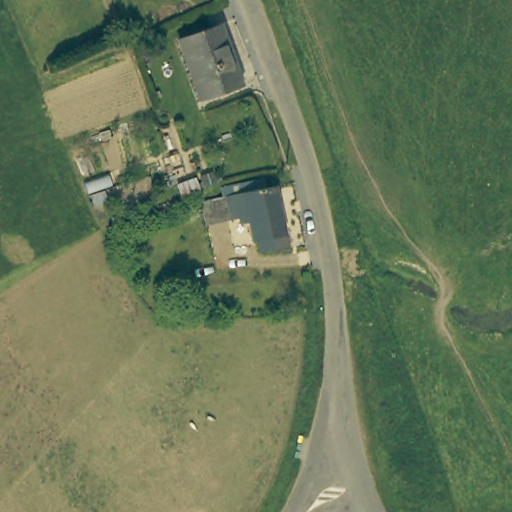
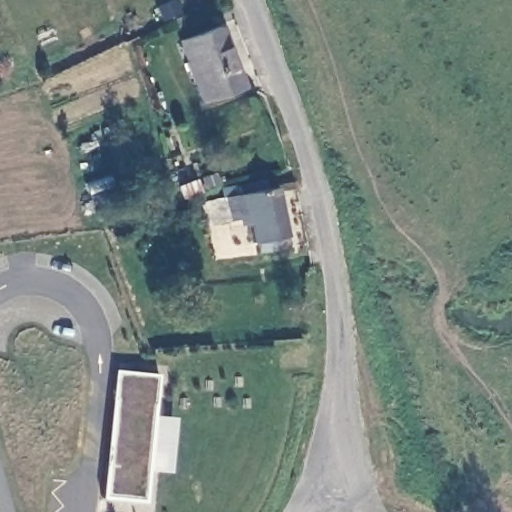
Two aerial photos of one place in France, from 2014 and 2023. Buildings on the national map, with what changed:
unchanged [(219,23),(243,82),(205,96),(183,35),(219,23)]
unchanged [(274,246),(272,234),(256,238),(251,214),(210,223),(204,197),(228,193),(227,186),(249,179),(252,188),(275,183),(290,231),(294,241),(274,246)]
new [(148,503),(101,499),(114,369),(159,375),(148,503)]

